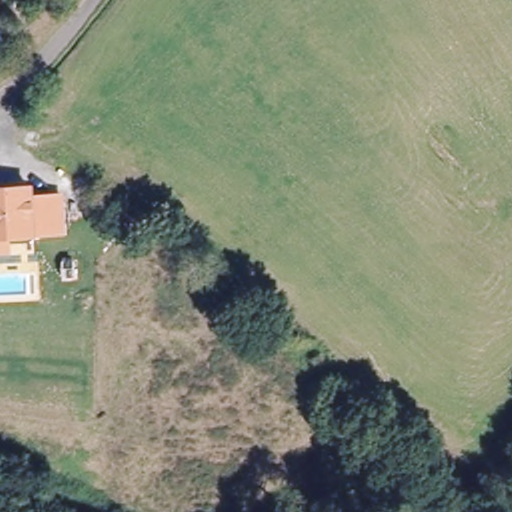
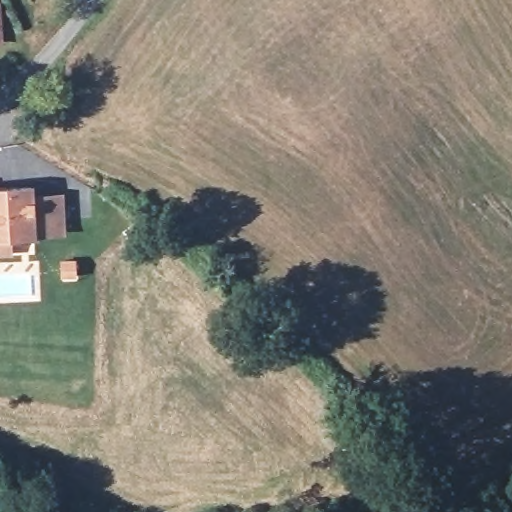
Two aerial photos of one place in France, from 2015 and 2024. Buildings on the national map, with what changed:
unchanged [(4,45),(0,46),(0,1),(2,0),(4,45)]
unchanged [(12,240),(0,240),(0,178),(40,177),(40,186),(70,186),(71,223),(36,224),(36,231),(12,232),(12,240)]
unchanged [(81,265),(71,265),(71,252),(81,252),(81,265)]

